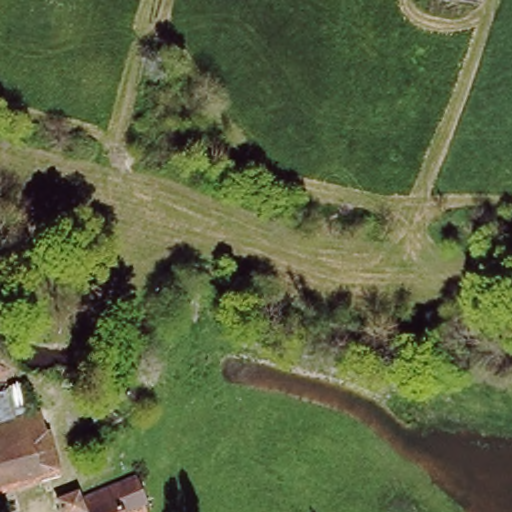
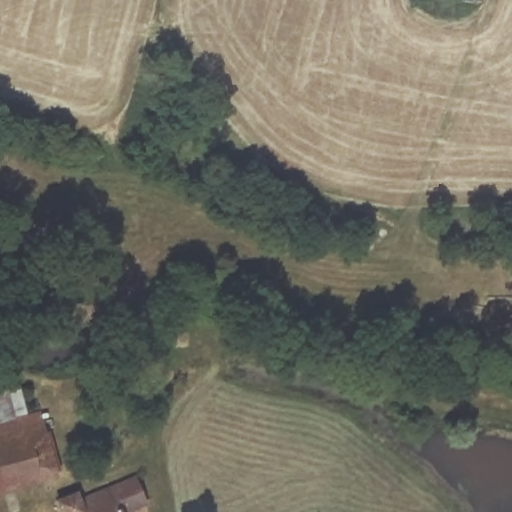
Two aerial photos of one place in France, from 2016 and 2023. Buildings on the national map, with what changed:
unchanged [(43,419),(58,468),(0,490),(0,434),(43,419)]
unchanged [(81,509),(136,483),(146,504),(128,512),(83,512),(81,509)]

